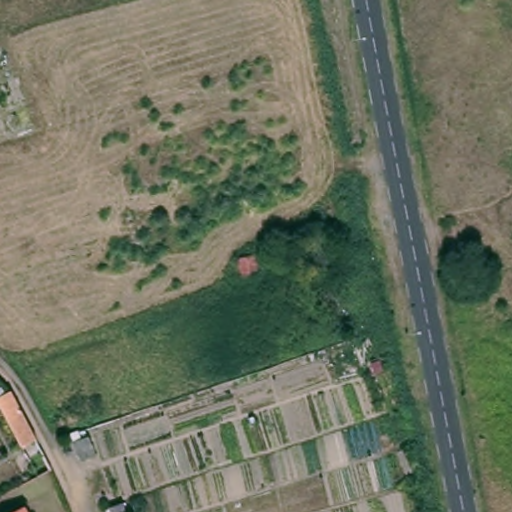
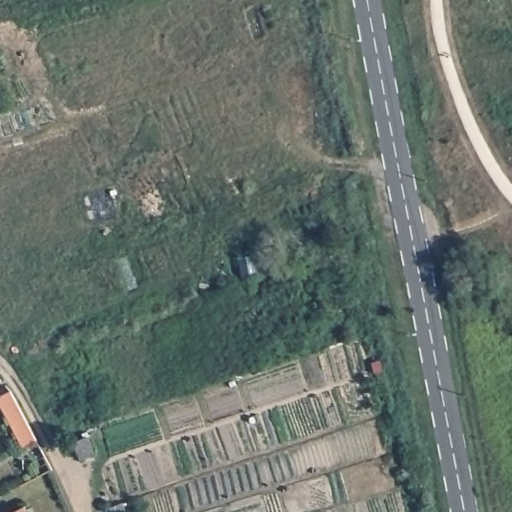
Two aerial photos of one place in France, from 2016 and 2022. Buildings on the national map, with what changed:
unchanged [(38,435),(21,442),(0,400),(0,389),(11,383),(37,432),(38,435)]
unchanged [(36,474),(26,456),(39,450),(48,468),(36,474)]
unchanged [(26,512),(19,512),(24,509),(26,512)]

